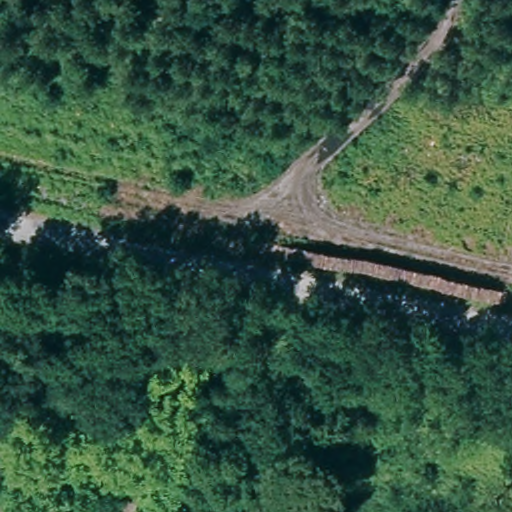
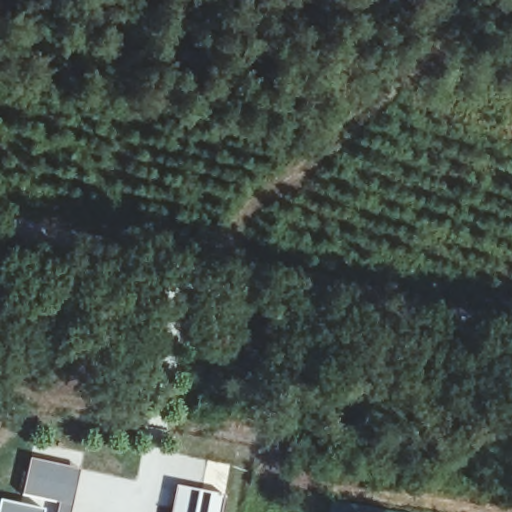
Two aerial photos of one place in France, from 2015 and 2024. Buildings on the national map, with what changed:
demolished [(57,446),(85,449),(83,469),(55,467),(57,446)]
new [(22,494),(30,455),(81,467),(72,512),(57,512),(59,502),(22,494)]
demolished [(9,459),(22,461),(18,486),(4,483),(9,459)]
new [(225,495),(222,512),(171,512),(176,485),(225,495)]
demolished [(235,490),(232,512),(182,512),(185,485),(235,490)]
new [(0,512),(0,500),(45,510),(44,512),(0,512)]

